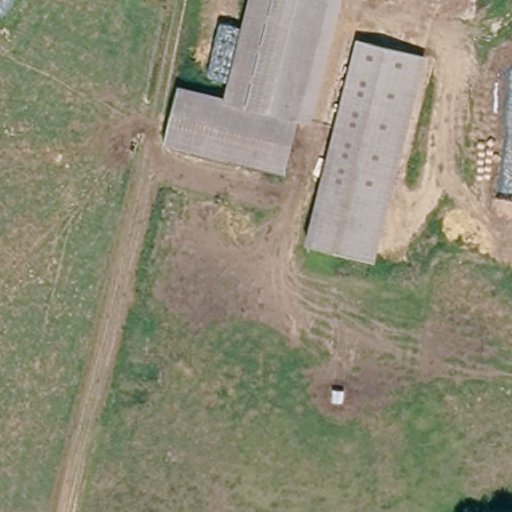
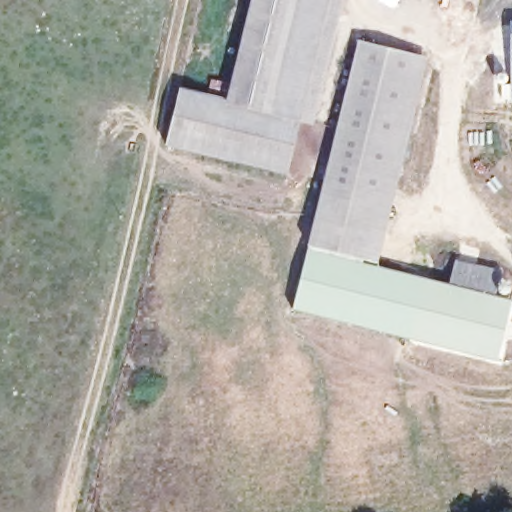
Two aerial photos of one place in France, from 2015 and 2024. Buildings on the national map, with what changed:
unchanged [(165,143),(179,89),(227,101),(253,0),(330,0),(285,174),(165,143)]
new [(509,21),(512,21),(512,97),(511,97),(509,21)]
unchanged [(367,257),(311,244),(328,180),(363,40),(418,54),(367,257)]
new [(512,304),(512,308),(497,365),(293,314),(309,253),(512,304)]

